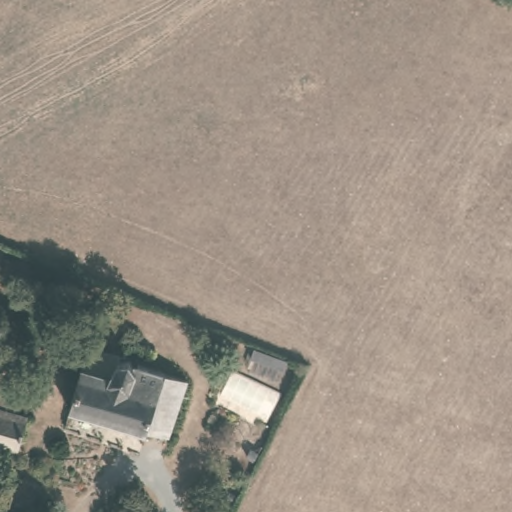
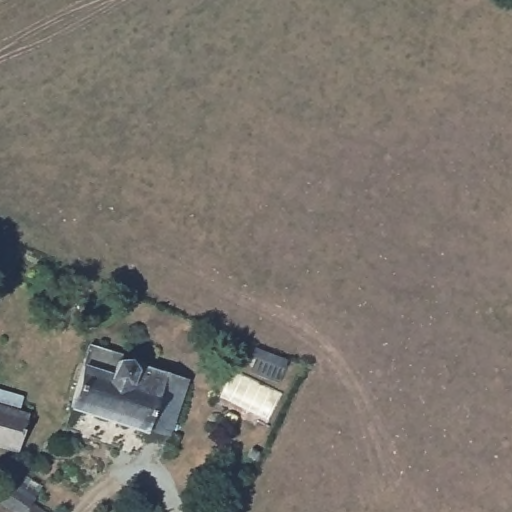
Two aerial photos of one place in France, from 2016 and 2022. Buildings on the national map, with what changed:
unchanged [(71,410),(90,345),(136,360),(134,365),(188,381),(174,427),(170,437),(149,431),(71,410)]
unchanged [(18,451),(0,445),(0,407),(29,414),(18,451)]
unchanged [(5,477),(7,481),(9,484),(11,481),(35,496),(31,502),(47,512),(13,512),(0,504),(0,477),(1,477),(5,477)]

